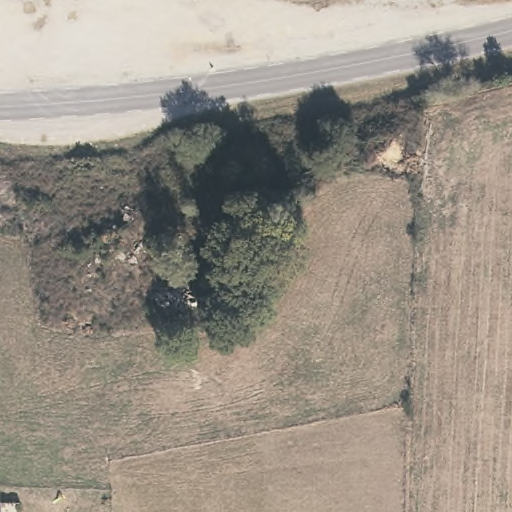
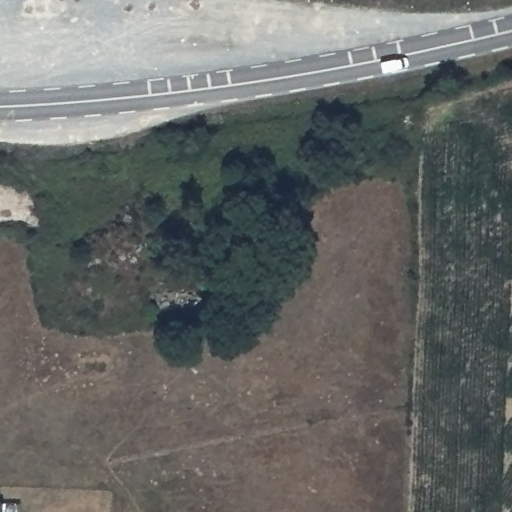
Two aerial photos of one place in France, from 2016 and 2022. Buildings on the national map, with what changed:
unchanged [(1,512),(0,512),(0,502),(1,502),(1,512)]

